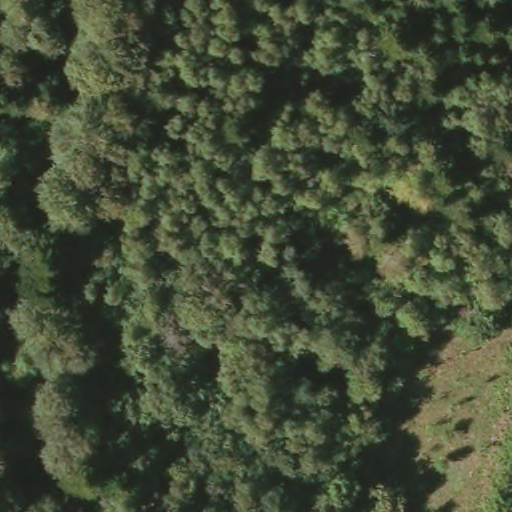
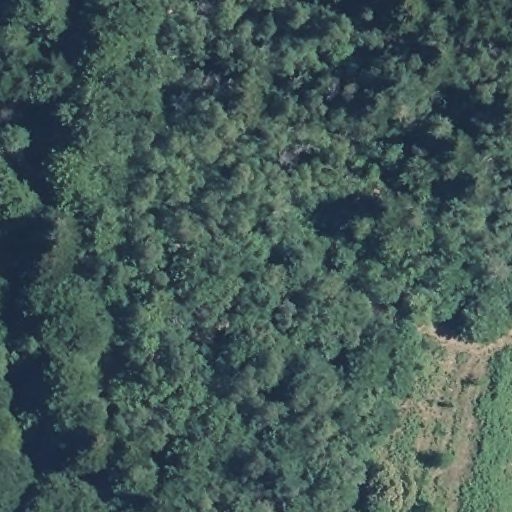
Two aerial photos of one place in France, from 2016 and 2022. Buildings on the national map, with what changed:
[]

